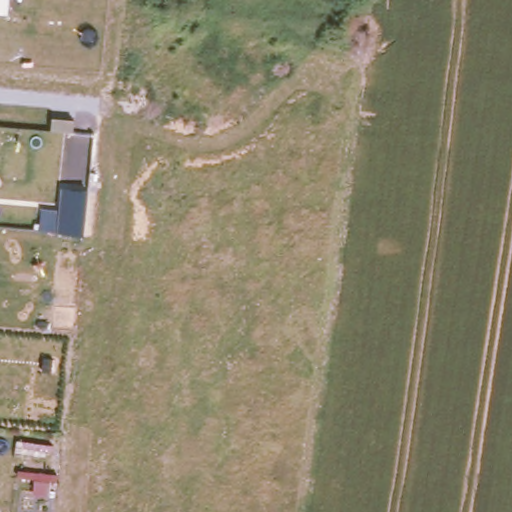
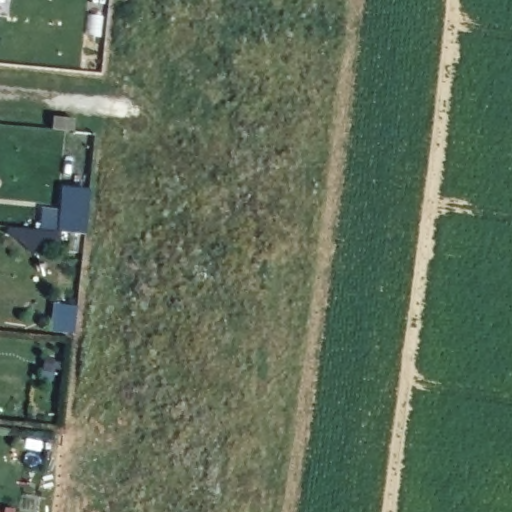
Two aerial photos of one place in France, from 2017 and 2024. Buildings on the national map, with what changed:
unchanged [(50,132),(51,121),(73,124),(72,135),(50,132)]
unchanged [(88,240),(56,237),(59,188),(87,190),(88,240)]

